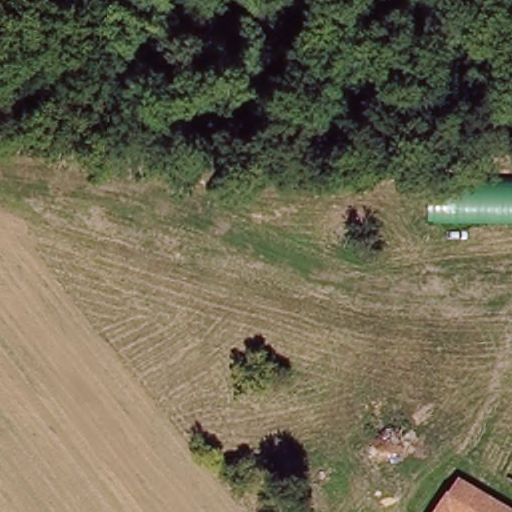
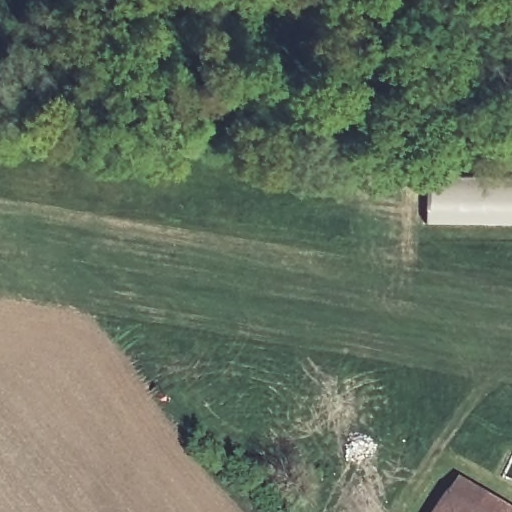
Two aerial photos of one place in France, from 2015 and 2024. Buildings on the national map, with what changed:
unchanged [(512,179),(512,225),(430,226),(430,180),(512,179)]
unchanged [(452,508),(462,495),(468,498),(479,483),(510,502),(512,503),(512,512),(460,512),(452,508)]

